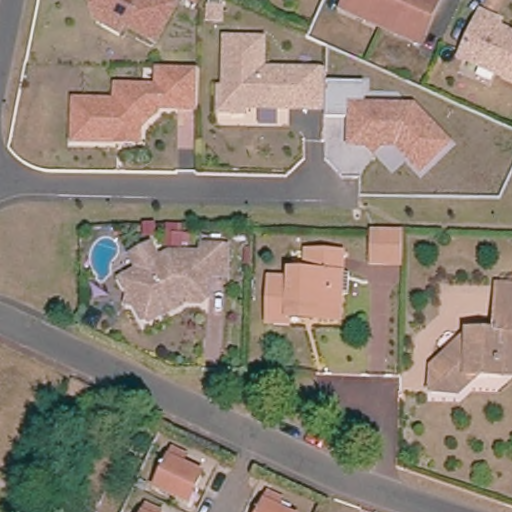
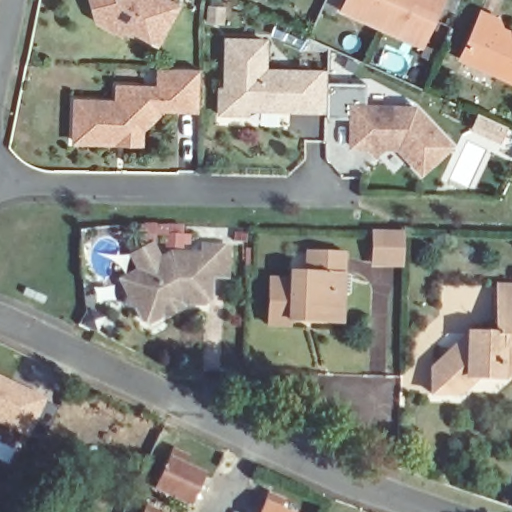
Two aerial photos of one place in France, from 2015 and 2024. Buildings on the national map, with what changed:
unchanged [(94,18),(88,0),(167,0),(174,3),(154,40),(122,23),(118,31),(94,18)]
unchanged [(394,36),(396,34),(364,21),(361,23),(339,13),(345,0),(434,0),(438,1),(428,23),(416,47),(394,36)]
unchanged [(202,4),(214,5),(214,17),(201,17),(202,4)]
unchanged [(479,13),(497,22),(493,30),(510,38),(511,42),(512,43),(512,86),(458,59),(479,13)]
unchanged [(247,108),(225,108),(225,86),(227,40),(264,40),(264,71),(327,72),(327,83),(327,109),(290,109),(276,109),(264,108),(247,108)]
unchanged [(114,144),(71,143),(71,103),(113,104),(114,88),(154,89),(154,69),(194,70),(194,110),(154,109),(154,115),(138,130),(138,145),(114,144)]
unchanged [(327,109),(327,83),(367,85),(368,101),(416,104),(452,143),(421,174),(399,150),(351,150),(350,118),(327,119),(327,109)]
unchanged [(375,263),(376,234),(404,234),(404,264),(375,263)]
unchanged [(167,315),(158,315),(146,322),(136,323),(129,305),(123,304),(124,297),(116,279),(134,270),(126,255),(146,244),(154,259),(165,254),(194,255),(199,247),(223,247),(222,276),(208,276),(208,294),(206,299),(193,304),(181,303),(174,304),(170,313),(167,315)]
unchanged [(288,321),(288,324),(267,324),(266,276),(287,277),(287,269),(303,269),(303,247),(341,248),(340,270),(334,269),(334,284),(341,287),(340,308),(339,322),(288,321)]
unchanged [(504,377),(476,375),(456,394),(430,393),(431,369),(456,346),(469,346),(469,333),(497,335),(498,288),(512,290),(512,378),(504,377)]
new [(28,437),(0,424),(0,376),(45,398),(28,437)]
unchanged [(184,498),(175,494),(151,481),(168,448),(180,454),(177,460),(189,466),(198,470),(184,498)]
unchanged [(275,501),(273,507),(282,512),(255,512),(263,495),(275,501)]
unchanged [(146,512),(138,512),(140,509),(146,512)]

